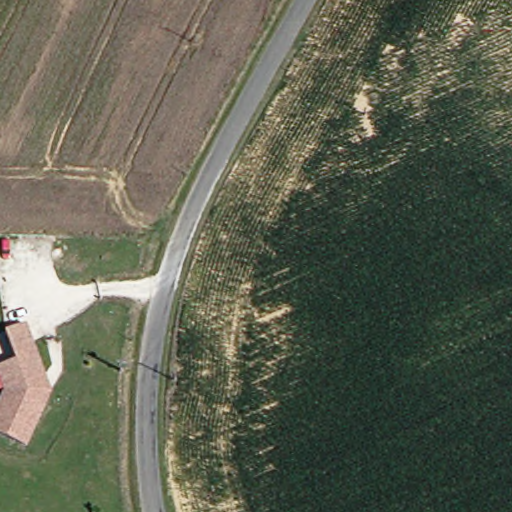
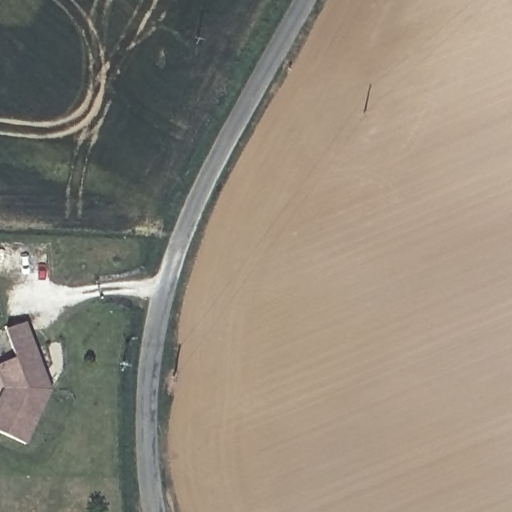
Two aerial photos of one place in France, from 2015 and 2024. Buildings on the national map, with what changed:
unchanged [(0,402),(5,392),(0,376),(0,363),(15,357),(4,330),(23,321),(48,392),(22,445),(0,434),(0,402)]

